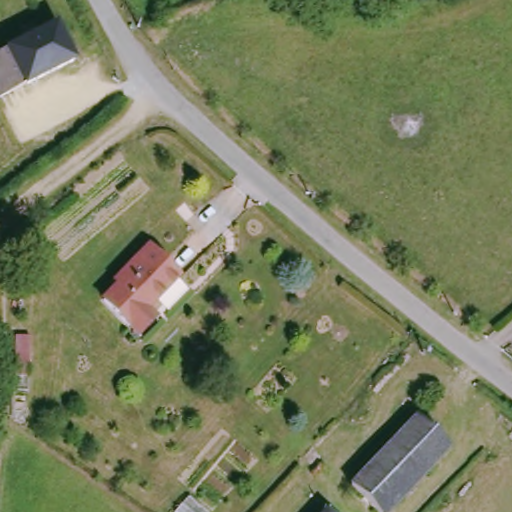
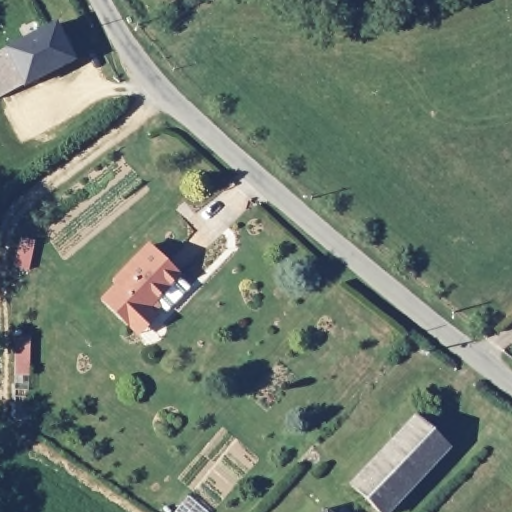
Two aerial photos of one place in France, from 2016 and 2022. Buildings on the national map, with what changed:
unchanged [(62,31),(77,65),(26,87),(1,97),(0,94),(0,58),(11,53),(62,31)]
unchanged [(118,285),(115,280),(152,244),(183,273),(156,300),(167,310),(140,335),(102,299),(118,285)]
unchanged [(421,416),(454,446),(393,512),(386,512),(358,486),(421,416)]
unchanged [(332,512),(329,512),(330,511),(332,512)]

